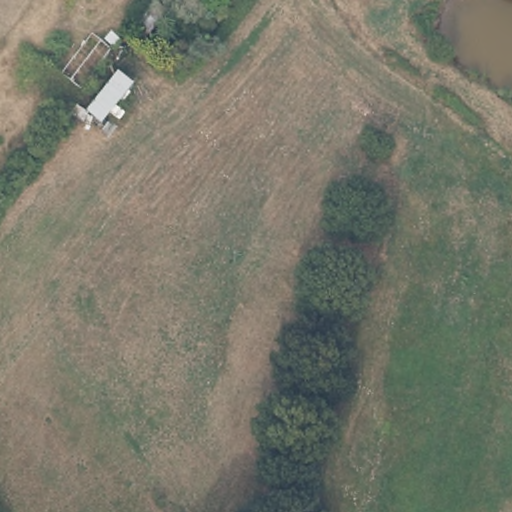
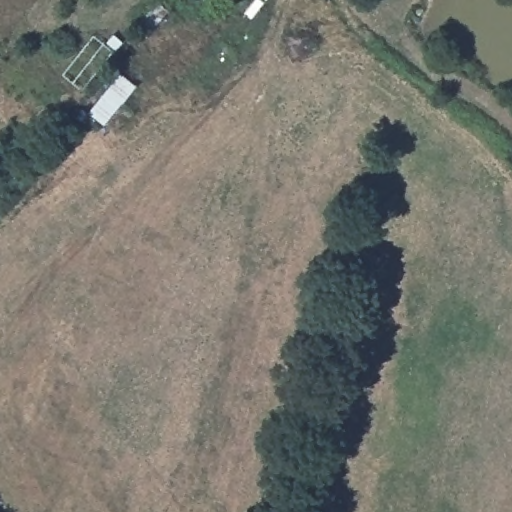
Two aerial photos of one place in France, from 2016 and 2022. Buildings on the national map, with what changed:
unchanged [(158,0),(168,8),(146,37),(134,29),(155,0),(158,0)]
unchanged [(213,0),(217,0),(215,2),(213,0)]

